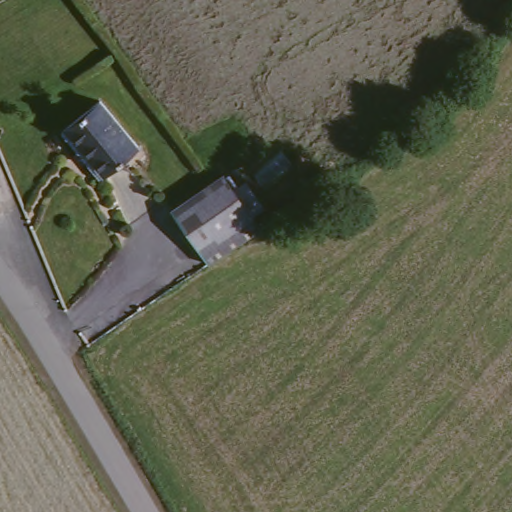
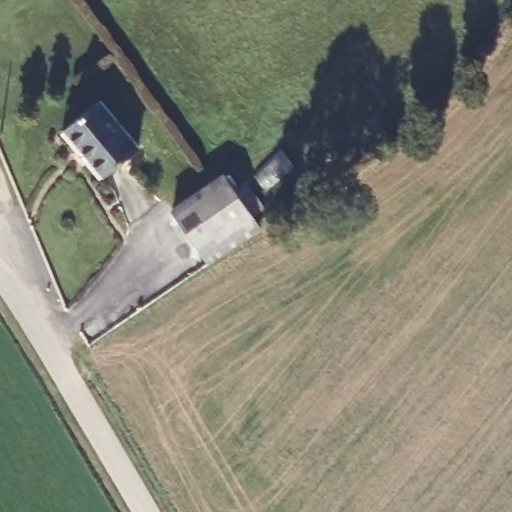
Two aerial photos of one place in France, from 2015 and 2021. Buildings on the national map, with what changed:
unchanged [(67,127),(75,120),(110,92),(149,138),(112,165),(104,170),(67,127)]
unchanged [(217,264),(178,208),(200,192),(231,172),(272,231),(217,264)]

